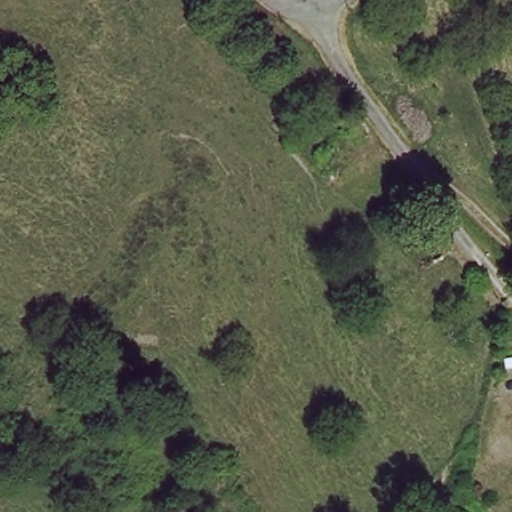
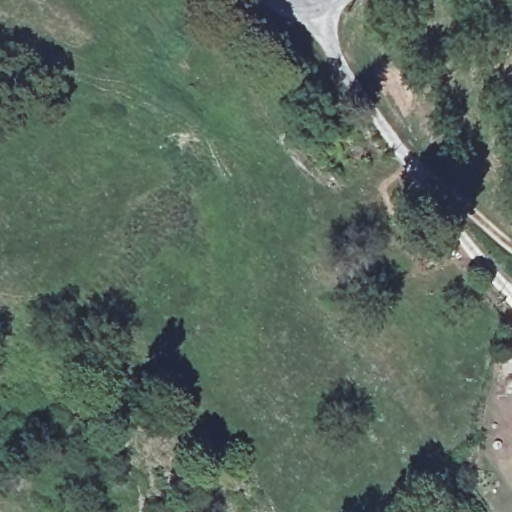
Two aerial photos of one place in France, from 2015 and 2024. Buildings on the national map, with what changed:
unchanged [(377,185),(391,200),(374,211),(363,197),(377,185)]

